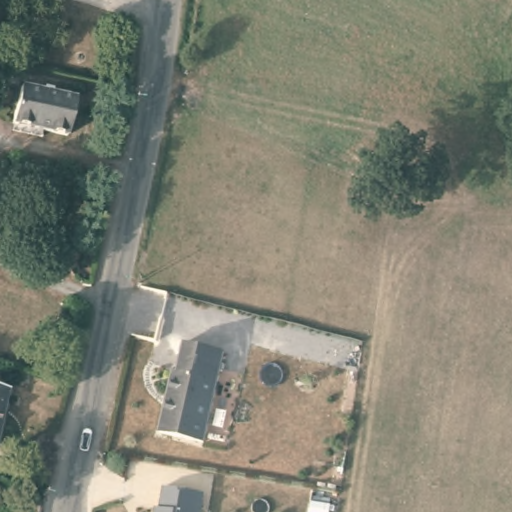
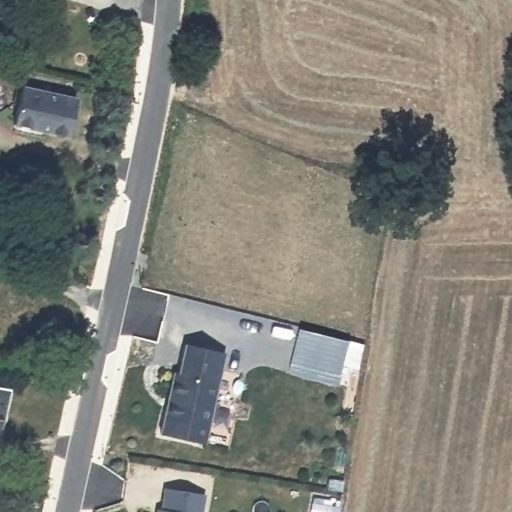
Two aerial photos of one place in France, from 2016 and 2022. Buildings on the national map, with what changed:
unchanged [(70,131),(16,120),(23,81),(78,92),(70,131)]
new [(340,373),(291,360),(300,327),(349,338),(340,373)]
unchanged [(203,446),(159,436),(173,375),(178,375),(184,347),(223,355),(203,446)]
unchanged [(12,387),(0,447),(0,384),(12,387)]
unchanged [(201,512),(157,512),(157,511),(160,511),(163,489),(203,496),(201,512)]

